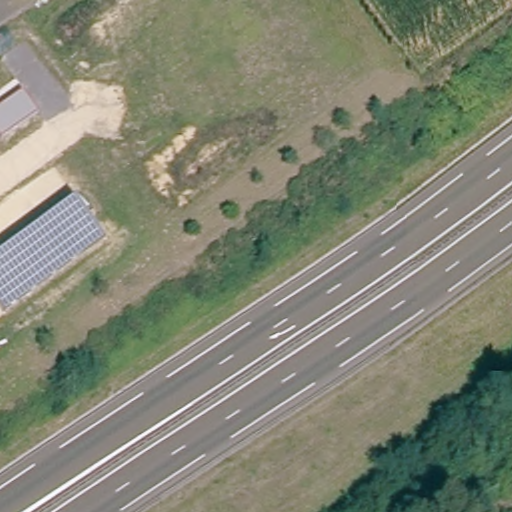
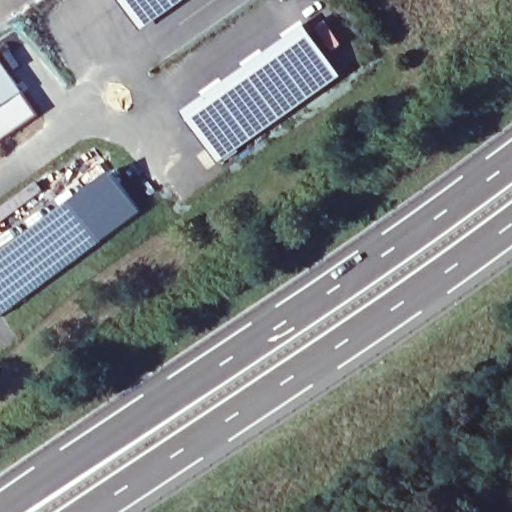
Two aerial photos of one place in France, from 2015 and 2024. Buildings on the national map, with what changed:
new [(143,31),(121,0),(186,0),(143,31)]
new [(344,77),(222,164),(184,114),(308,25),(344,77)]
new [(0,107),(0,61),(20,92),(0,107)]
unchanged [(0,137),(0,107),(20,92),(37,114),(2,139),(0,137)]
new [(115,173),(144,213),(105,242),(74,202),(115,173)]
new [(37,181),(42,187),(37,191),(37,196),(2,224),(0,222),(0,208),(37,181)]
unchanged [(0,310),(0,257),(74,202),(105,242),(5,316),(0,310)]

